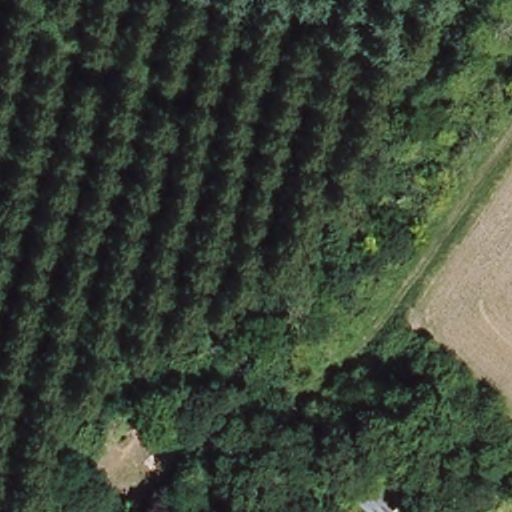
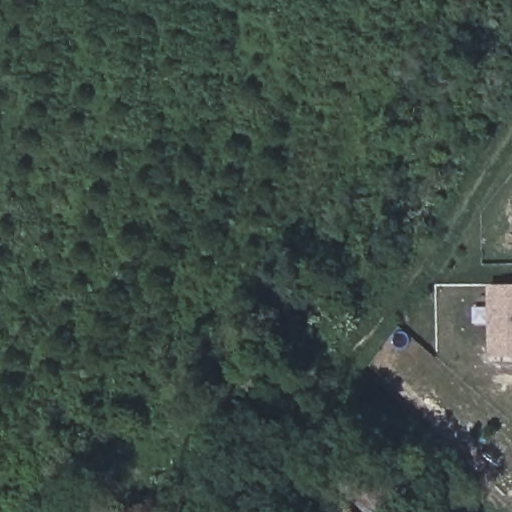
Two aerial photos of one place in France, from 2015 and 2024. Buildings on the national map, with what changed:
new [(512,357),(490,357),(490,284),(512,284),(512,357)]
unchanged [(358,512),(339,512),(347,503),(358,512)]

